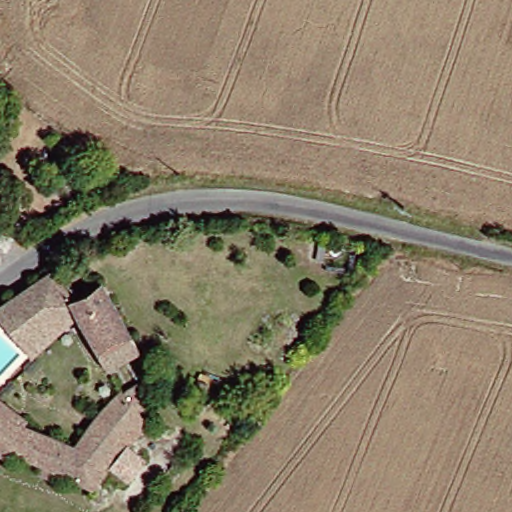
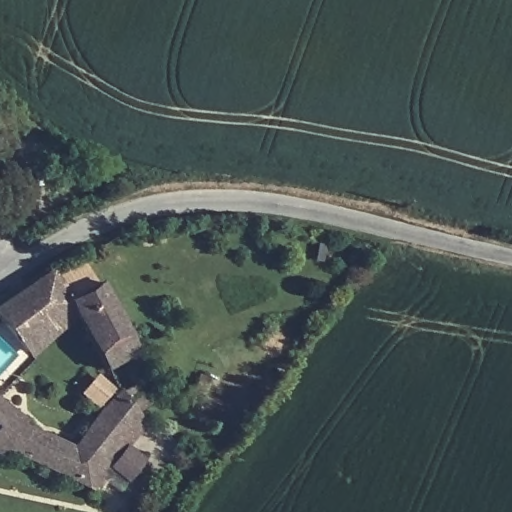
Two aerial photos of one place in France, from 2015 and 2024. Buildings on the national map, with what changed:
unchanged [(63,278),(82,309),(87,317),(44,355),(15,316),(63,278)]
unchanged [(90,338),(97,332),(87,317),(82,309),(110,288),(150,350),(120,370),(105,346),(98,350),(90,338)]
unchanged [(103,495),(69,477),(65,486),(47,476),(51,468),(23,457),(17,462),(0,452),(0,391),(37,421),(35,425),(85,448),(119,402),(132,394),(145,383),(160,402),(149,413),(159,424),(140,447),(153,461),(131,485),(117,473),(103,495)]

